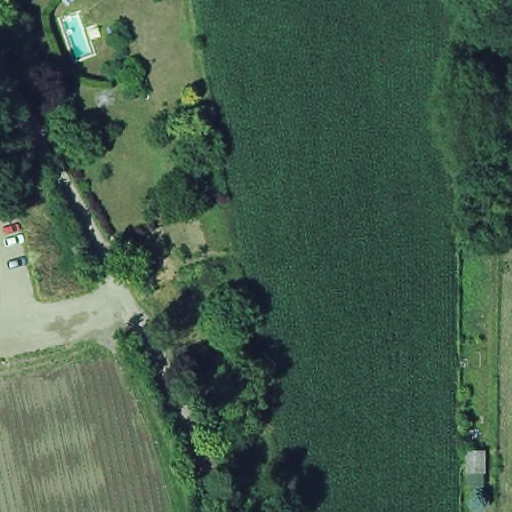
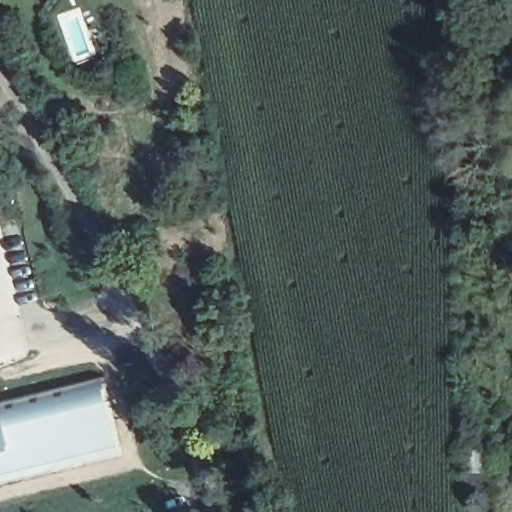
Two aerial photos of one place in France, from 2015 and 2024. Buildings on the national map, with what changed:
new [(6,408),(108,383),(128,458),(0,486),(0,391),(6,408)]
unchanged [(468,450),(484,450),(484,474),(468,474),(468,450)]

